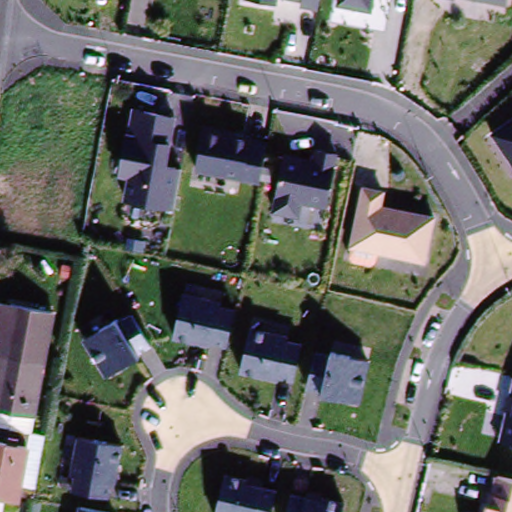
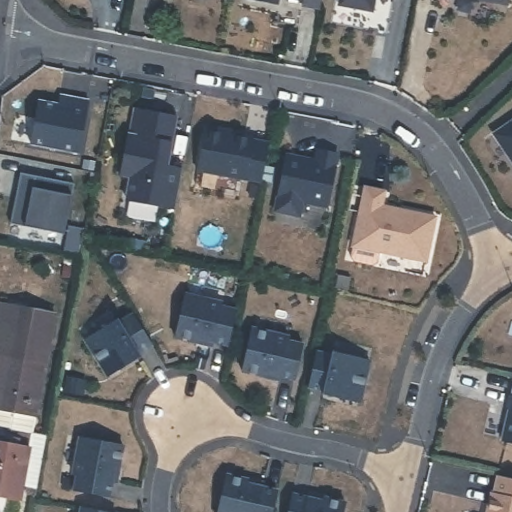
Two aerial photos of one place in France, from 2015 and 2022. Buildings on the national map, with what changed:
unchanged [(294,0),(320,0),(319,4),(294,0)]
unchanged [(342,1),(342,0),(376,0),(375,7),(342,1)]
unchanged [(448,0),(455,0),(455,1),(448,0)]
unchanged [(470,0),(509,0),(507,8),(470,0)]
new [(29,147),(37,101),(57,105),(59,95),(87,101),(77,155),(29,147)]
unchanged [(176,117),(167,170),(184,172),(177,213),(124,205),(127,180),(122,178),(133,110),(176,117)]
unchanged [(512,112),(512,148),(495,124),(512,112)]
unchanged [(271,133),(263,178),(200,169),(207,123),(271,133)]
unchanged [(316,150),(319,141),(343,145),(332,200),(310,197),(306,214),(278,210),(289,145),(316,150)]
new [(22,227),(10,224),(20,174),(72,185),(70,197),(63,235),(22,227)]
unchanged [(392,185),(388,200),(437,211),(427,260),(350,247),(368,180),(392,185)]
unchanged [(228,348),(216,345),(215,350),(174,341),(185,294),(223,303),(222,307),(237,311),(228,348)]
unchanged [(8,301),(51,309),(29,428),(7,425),(0,424),(0,321),(5,322),(8,301)]
unchanged [(155,349),(107,379),(85,342),(132,314),(155,349)]
unchanged [(280,378),(279,383),(241,374),(251,329),(290,337),(290,342),(303,345),(295,382),(280,378)]
unchanged [(307,392),(317,350),(371,363),(362,405),(307,392)]
unchanged [(502,434),(512,394),(512,436),(502,434)]
unchanged [(7,425),(29,428),(44,431),(44,433),(32,486),(17,484),(15,497),(2,495),(0,507),(0,438),(3,439),(7,425)]
unchanged [(125,447),(118,486),(112,485),(111,498),(72,492),(75,478),(72,477),(78,439),(125,447)]
unchanged [(488,493),(495,494),(499,472),(512,474),(512,512),(484,512),(488,493)]
unchanged [(273,512),(218,512),(226,475),(262,484),(262,487),(278,491),(273,512)]
unchanged [(308,497),(308,495),(346,504),(344,512),(288,512),(292,494),(308,497)]
unchanged [(101,512),(80,512),(81,509),(101,512)]

